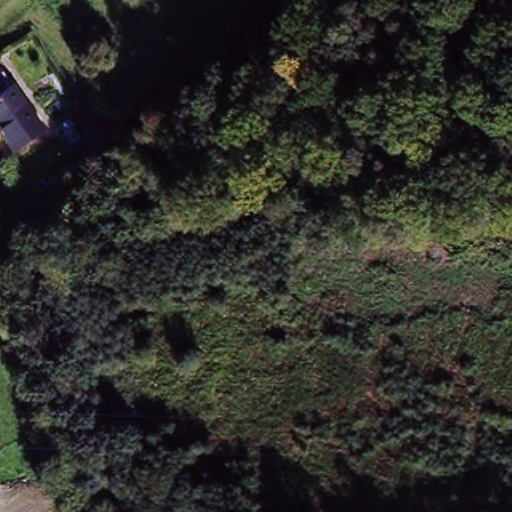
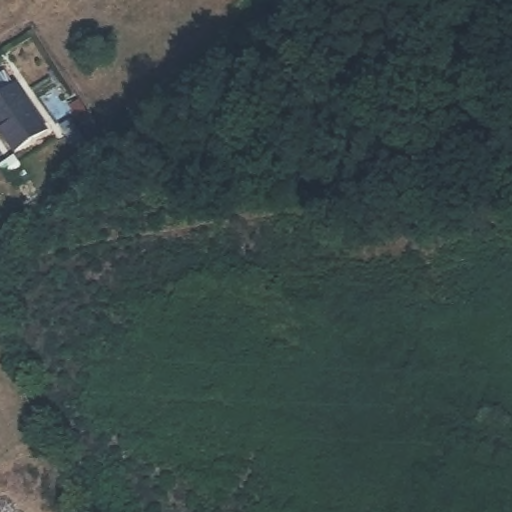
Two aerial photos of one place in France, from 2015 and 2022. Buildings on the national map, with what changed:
unchanged [(14,73),(0,84),(0,64),(4,61),(14,73)]
unchanged [(52,126),(22,147),(0,119),(0,98),(20,83),(52,126)]
unchanged [(116,147),(115,148),(107,154),(86,125),(96,117),(116,147)]

